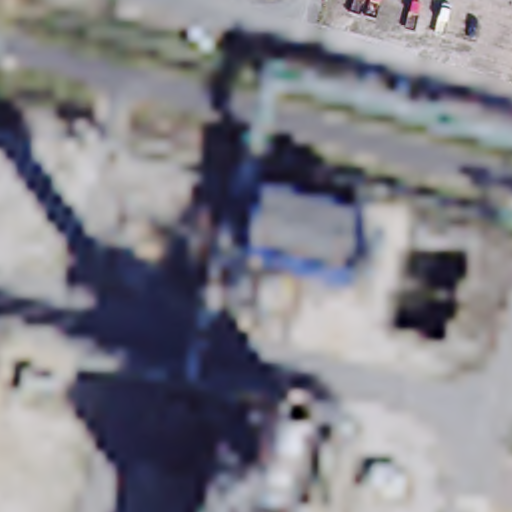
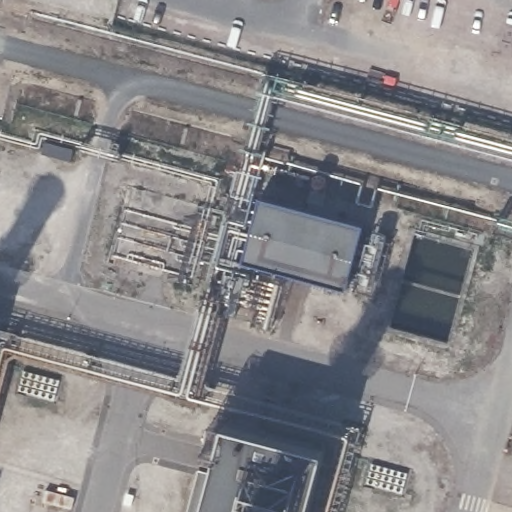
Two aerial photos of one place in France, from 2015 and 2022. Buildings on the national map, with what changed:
unchanged [(233,174),(252,179),(195,388),(357,432),(336,512),(320,512),(339,442),(5,355),(9,339),(177,384),(233,174)]
unchanged [(267,204),(355,227),(341,280),(253,255),(267,204)]
unchanged [(283,283),(272,325),(234,315),(245,273),(283,283)]
unchanged [(9,339),(5,355),(0,372),(0,337),(9,339)]
unchanged [(201,512),(225,422),(326,452),(309,512),(201,512)]

